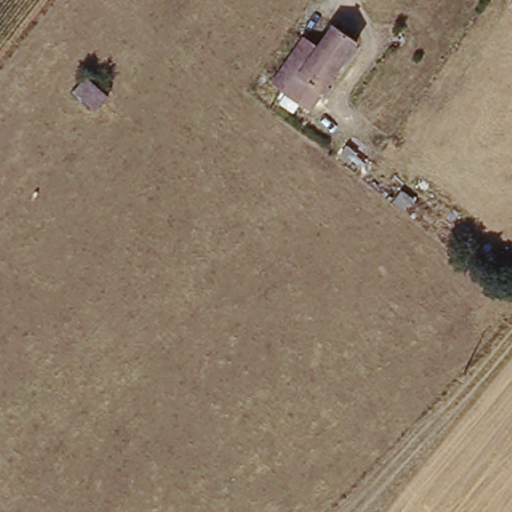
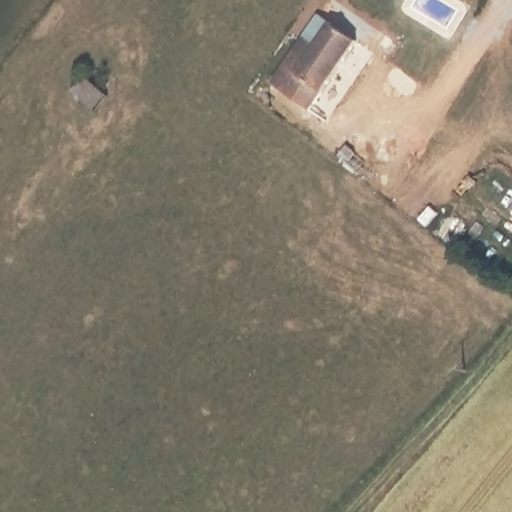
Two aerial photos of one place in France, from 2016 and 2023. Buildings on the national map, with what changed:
unchanged [(353,47),(309,109),(287,92),(297,79),(284,70),(304,42),(315,47),(329,30),(353,47)]

